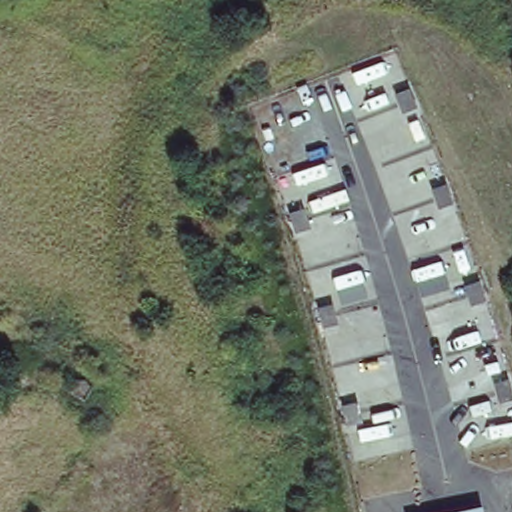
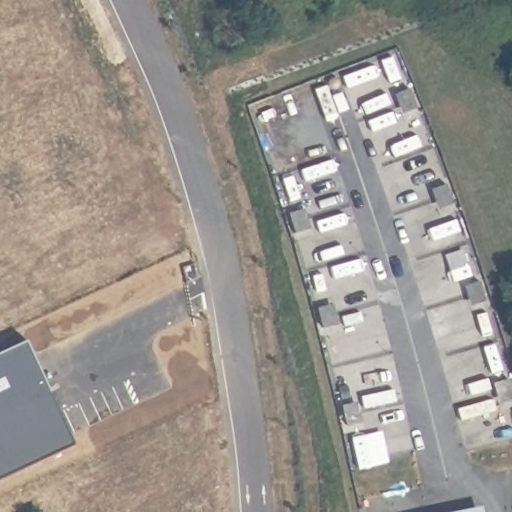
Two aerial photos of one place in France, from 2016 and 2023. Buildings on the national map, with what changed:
new [(73,444),(0,478),(0,354),(27,341),(73,444)]
unchanged [(456,512),(483,505),(484,512),(456,512)]

